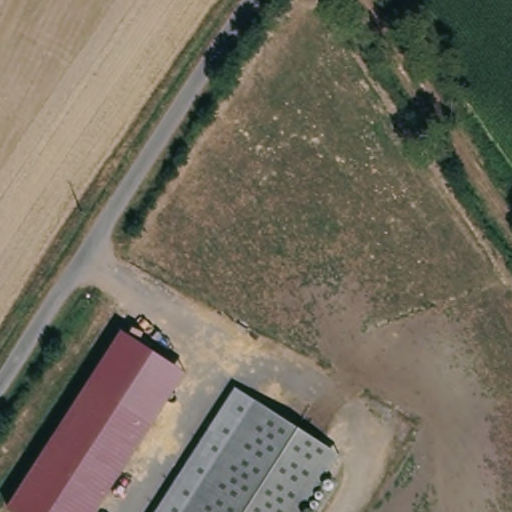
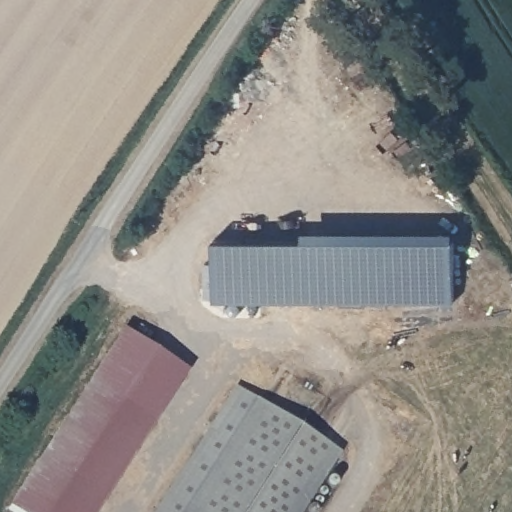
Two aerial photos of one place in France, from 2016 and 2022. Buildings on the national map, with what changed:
new [(276,231),(456,232),(456,242),(276,241),(276,231)]
new [(215,241),(276,241),(276,302),(215,301),(215,241)]
new [(276,241),(456,242),(456,303),(276,302),(276,241)]
unchanged [(185,371),(97,512),(7,512),(4,510),(121,330),(185,371)]
unchanged [(254,407),(243,425),(209,476),(186,512),(157,512),(235,393),(254,407)]
unchanged [(303,512),(186,512),(209,476),(243,425),(254,407),(336,460),(303,512)]

